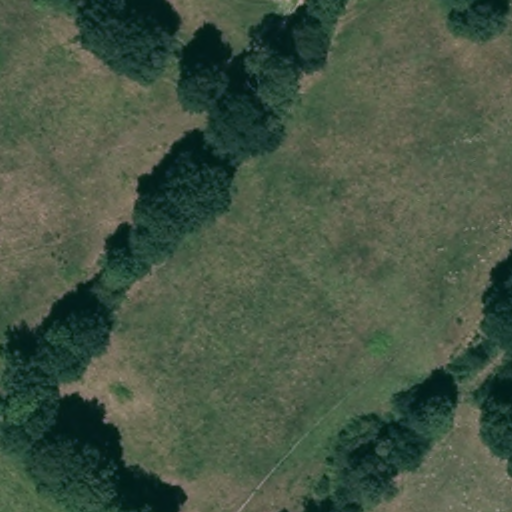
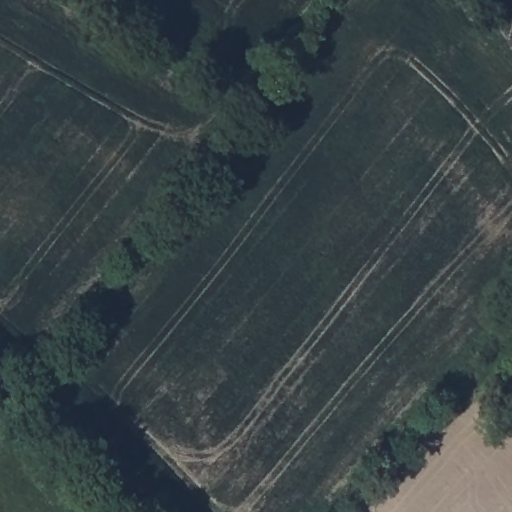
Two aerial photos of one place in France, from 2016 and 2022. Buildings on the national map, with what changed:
[]

